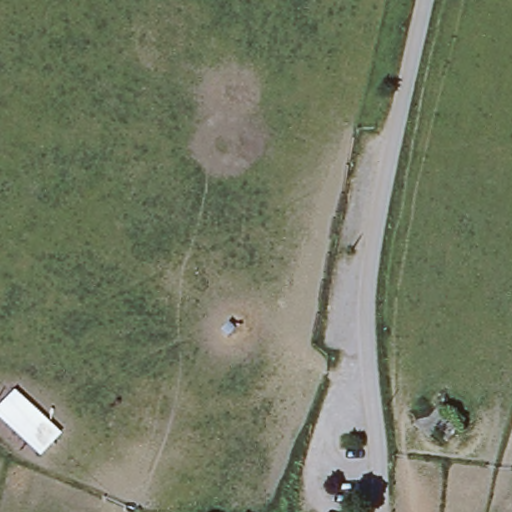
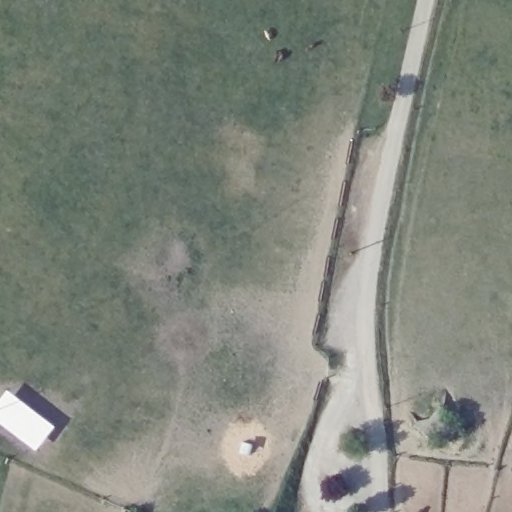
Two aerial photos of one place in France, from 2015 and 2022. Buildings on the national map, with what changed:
unchanged [(430,417),(441,403),(446,407),(442,412),(461,427),(447,442),(436,433),(430,440),(413,426),(418,420),(430,417)]

